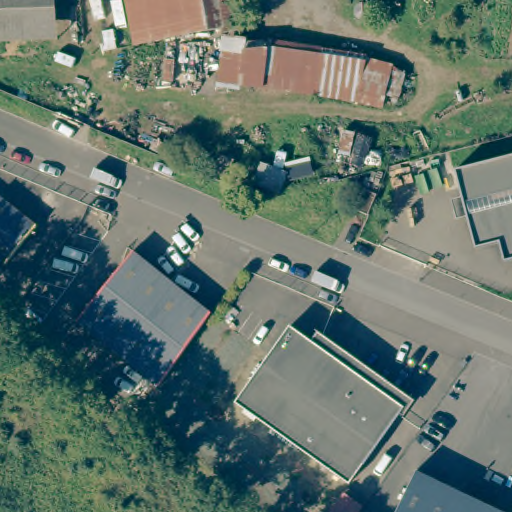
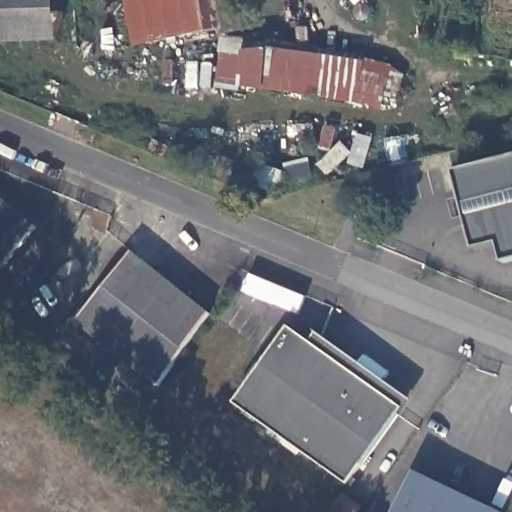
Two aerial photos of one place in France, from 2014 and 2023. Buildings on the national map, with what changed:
unchanged [(0,42),(0,0),(52,0),(54,41),(0,42)]
unchanged [(130,42),(123,0),(185,0),(191,31),(130,42)]
unchanged [(191,31),(185,0),(211,0),(216,26),(191,31)]
unchanged [(217,31),(216,26),(211,0),(233,0),(237,27),(217,31)]
unchanged [(352,102),(215,82),(221,52),(263,46),(363,62),(352,102)]
unchanged [(388,67),(378,108),(352,102),(363,62),(388,67)]
unchanged [(498,245),(474,251),(452,173),(512,158),(512,262),(503,264),(498,245)]
unchanged [(370,202),(361,223),(345,216),(353,196),(370,202)]
unchanged [(32,224),(1,263),(0,262),(0,198),(32,224)]
unchanged [(160,382),(155,387),(74,322),(130,251),(208,313),(160,382)]
unchanged [(289,329),(310,344),(317,334),(344,353),(337,363),(402,410),(348,484),(236,403),(289,329)]
unchanged [(414,472),(497,512),(396,512),(414,472)]

